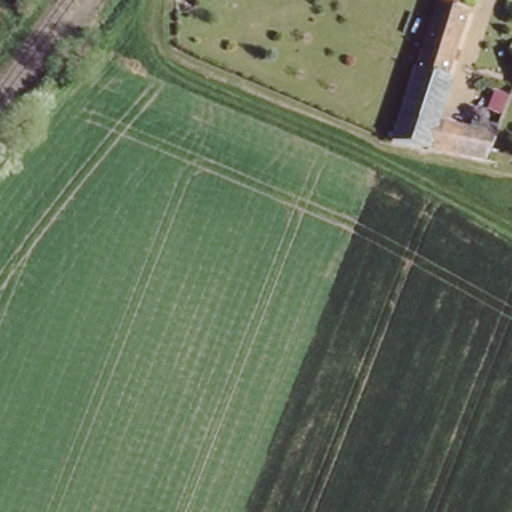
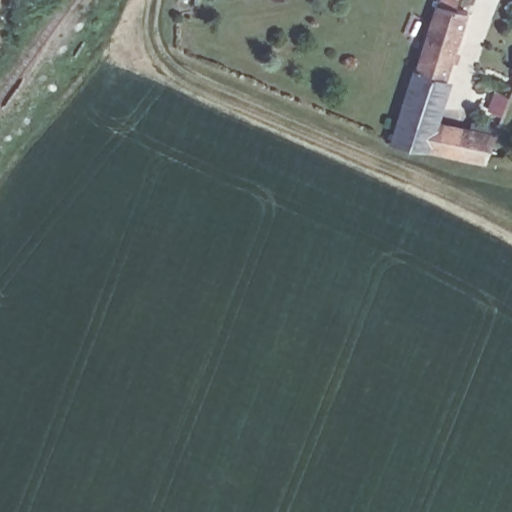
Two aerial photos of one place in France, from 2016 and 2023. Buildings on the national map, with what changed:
unchanged [(468,16),(450,79),(417,70),(440,0),(461,0),(457,12),(468,16)]
unchanged [(450,79),(440,111),(443,121),(442,127),(435,126),(427,155),(390,147),(417,70),(450,79)]
unchanged [(442,127),(474,135),(476,125),(499,130),(485,166),(427,155),(435,126),(442,127)]

